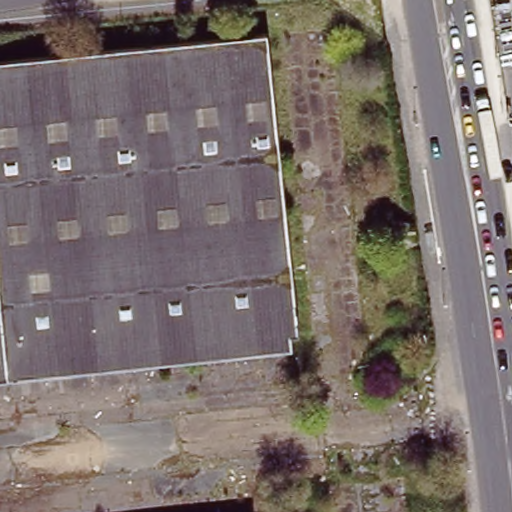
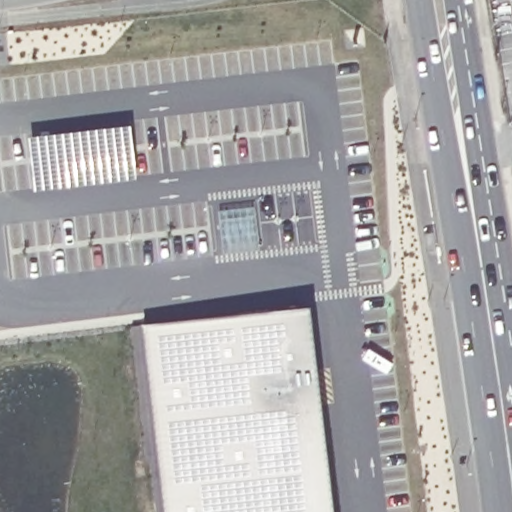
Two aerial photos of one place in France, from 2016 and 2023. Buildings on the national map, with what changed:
demolished [(0,373),(0,71),(267,43),(297,340),(0,373)]

